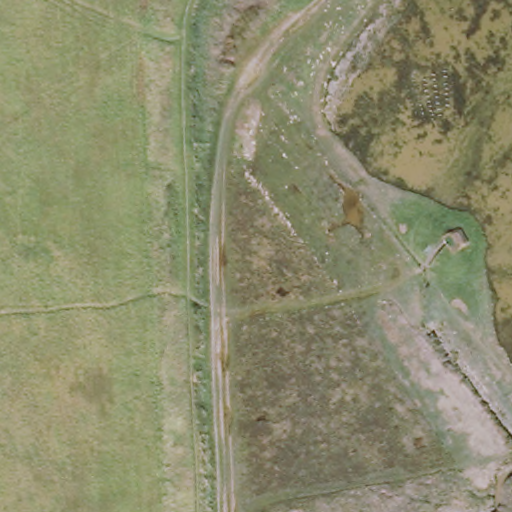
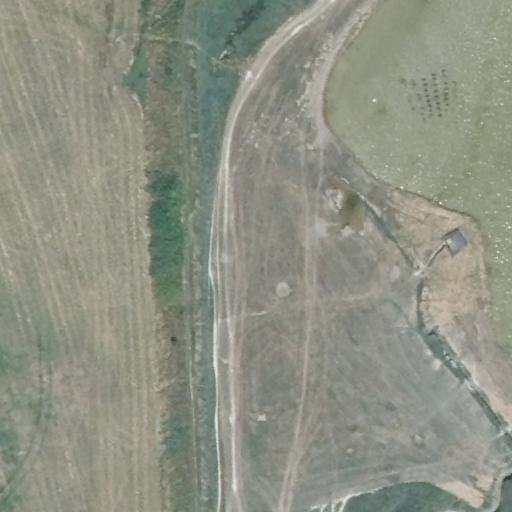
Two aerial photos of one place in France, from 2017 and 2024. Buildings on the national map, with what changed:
unchanged [(450,250),(445,236),(455,231),(463,244),(450,250)]

